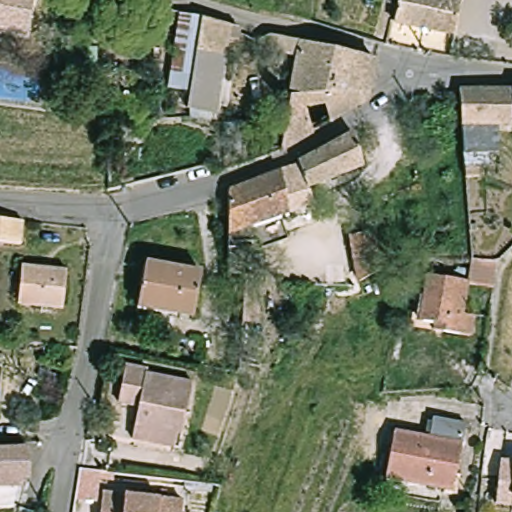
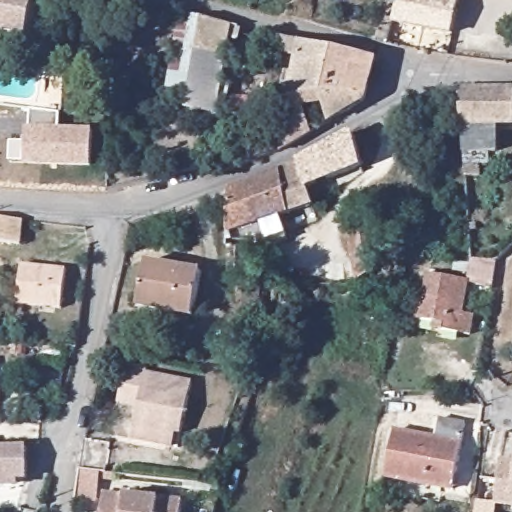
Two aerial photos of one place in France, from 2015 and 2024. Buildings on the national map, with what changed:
unchanged [(0,28),(0,0),(37,0),(30,35),(0,28)]
unchanged [(398,21),(402,0),(463,0),(457,33),(398,21)]
unchanged [(193,92),(174,89),(186,12),(205,17),(193,92)]
unchanged [(205,17),(243,27),(239,40),(232,38),(228,56),(219,109),(190,110),(193,92),(205,17)]
unchanged [(301,57),(278,52),(283,36),(379,57),(380,58),(371,102),(369,102),(334,123),(328,106),(309,109),(316,133),(285,151),(301,57)]
unchanged [(63,73),(61,106),(50,106),(52,72),(63,73)]
unchanged [(512,90),(512,123),(503,123),(504,151),(492,151),(493,167),(484,167),(484,176),(470,176),(464,90),(512,90)]
new [(29,127),(30,109),(59,114),(59,128),(92,128),(92,169),(24,167),(25,127),(29,127)]
unchanged [(139,119),(141,140),(119,141),(118,120),(139,119)]
unchanged [(311,192),(305,169),(303,167),(359,139),(366,171),(313,191),(311,192)]
unchanged [(233,238),(233,205),(233,195),(286,175),(304,170),(305,169),(311,192),(313,191),(318,209),(284,221),(293,244),(266,254),(264,246),(233,247),(233,238)]
unchanged [(29,245),(0,242),(0,217),(31,220),(29,245)]
unchanged [(378,232),(384,271),(363,282),(356,235),(378,232)]
unchanged [(497,257),(493,282),(468,278),(468,277),(470,255),(497,257)]
unchanged [(206,267),(198,311),(142,301),(150,257),(206,267)]
unchanged [(66,269),(62,309),(16,305),(21,265),(66,269)]
unchanged [(473,310),(470,330),(434,324),(434,317),(419,315),(421,307),(417,307),(418,299),(422,300),(427,270),(468,277),(463,308),(473,310)]
unchanged [(261,280),(258,325),(241,323),(244,277),(261,280)]
unchanged [(64,348),(63,360),(41,358),(43,346),(64,348)]
unchanged [(133,424),(138,406),(117,401),(126,363),(148,369),(147,373),(193,385),(179,436),(174,435),(171,449),(138,441),(141,427),(133,424)]
unchanged [(399,431),(434,437),(438,417),(470,423),(458,490),(391,477),(399,431)]
unchanged [(0,449),(30,448),(31,478),(18,479),(18,485),(0,485),(0,449)]
unchanged [(495,502),(501,460),(512,461),(512,504),(495,502)]
unchanged [(110,471),(107,501),(86,498),(89,478),(91,469),(110,471)]
unchanged [(192,502),(191,512),(111,512),(113,493),(192,502)]

